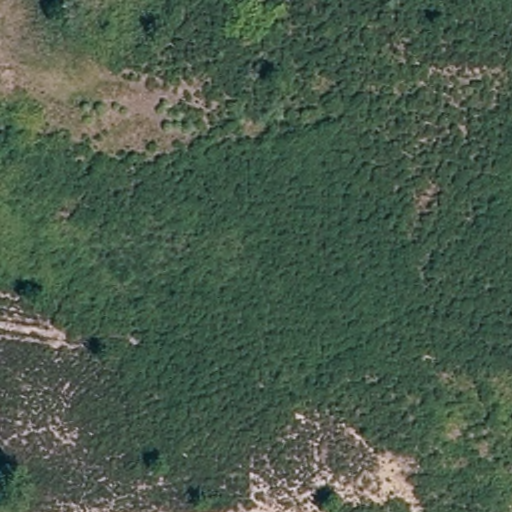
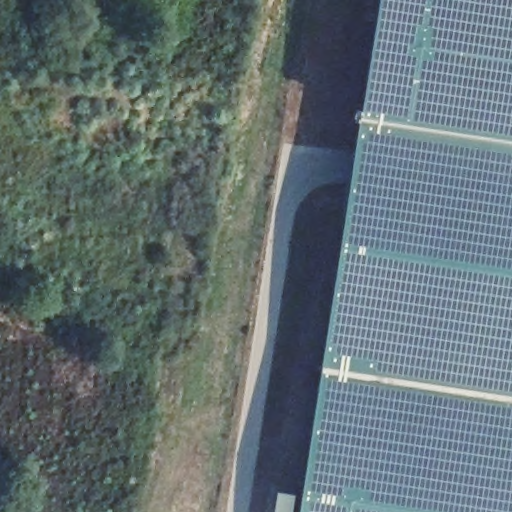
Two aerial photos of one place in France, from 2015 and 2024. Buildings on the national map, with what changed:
new [(360,115),(378,0),(512,0),(512,512),(299,512),(360,115)]
new [(280,489),(296,491),(293,512),(276,512),(280,489)]

